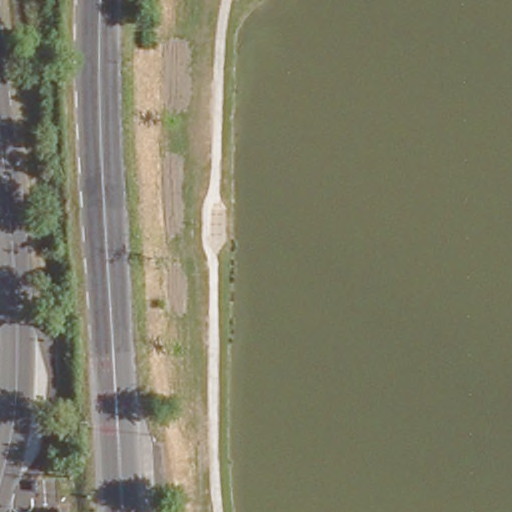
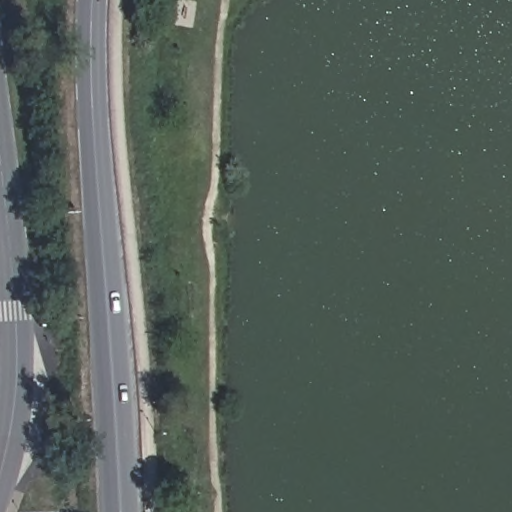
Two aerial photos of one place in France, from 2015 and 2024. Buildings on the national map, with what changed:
[]

